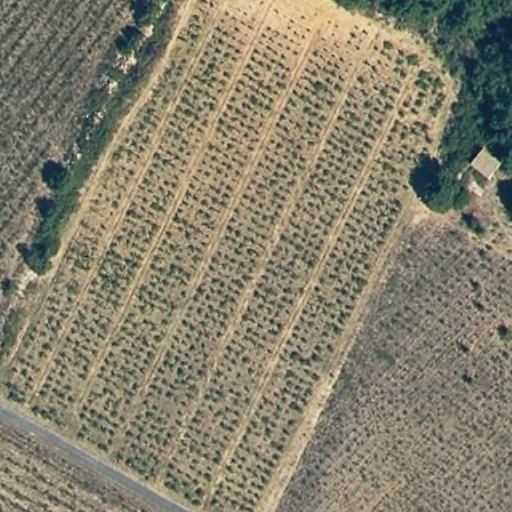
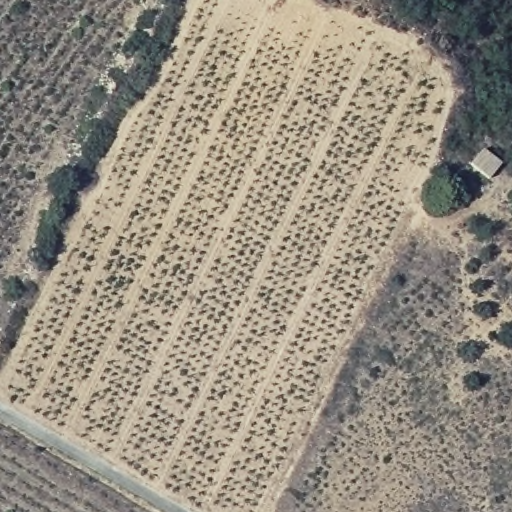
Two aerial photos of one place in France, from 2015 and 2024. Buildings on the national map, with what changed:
unchanged [(470,167),(483,146),(507,162),(492,183),(470,167)]

